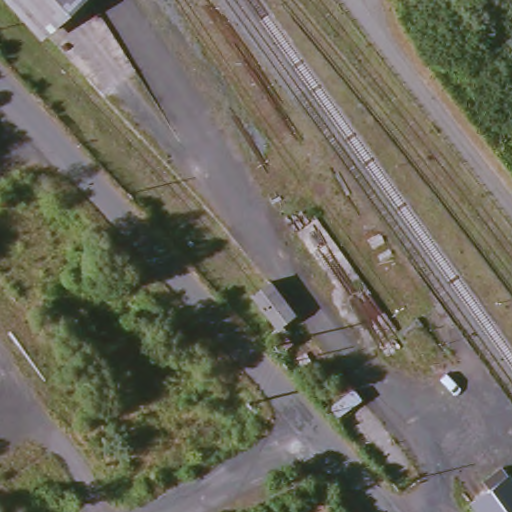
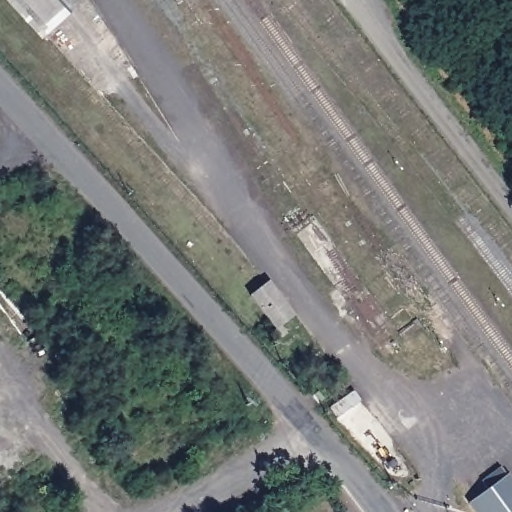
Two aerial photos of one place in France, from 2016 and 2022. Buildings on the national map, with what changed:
unchanged [(8,0),(76,0),(38,34),(8,0)]
unchanged [(267,281),(293,313),(273,330),(250,293),(267,281)]
unchanged [(512,512),(470,512),(465,504),(505,471),(512,480),(512,512)]

